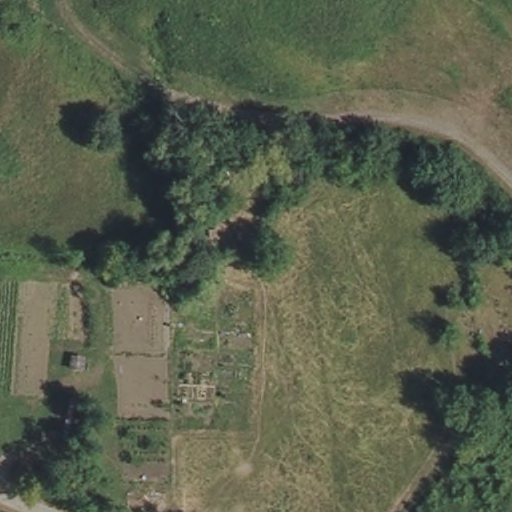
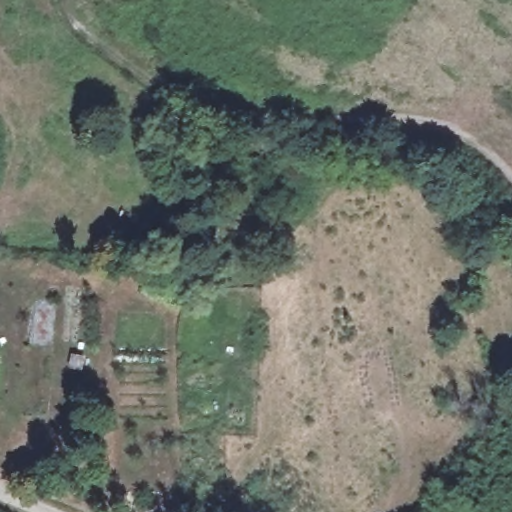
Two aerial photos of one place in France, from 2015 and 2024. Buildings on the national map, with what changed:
unchanged [(76,398),(72,436),(44,433),(48,395),(76,398)]

